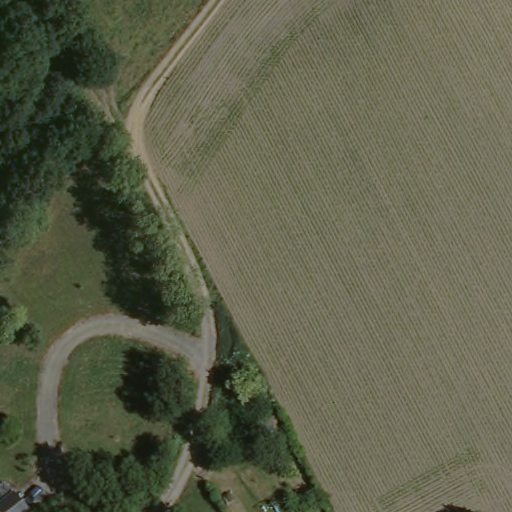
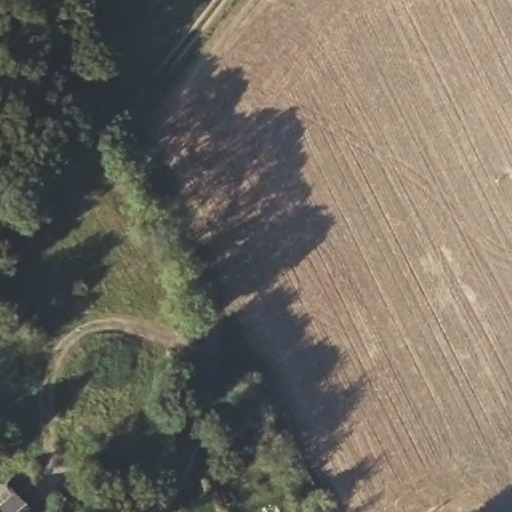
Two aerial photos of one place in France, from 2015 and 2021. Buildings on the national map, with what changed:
unchanged [(25,512),(2,512),(15,501),(25,512)]

